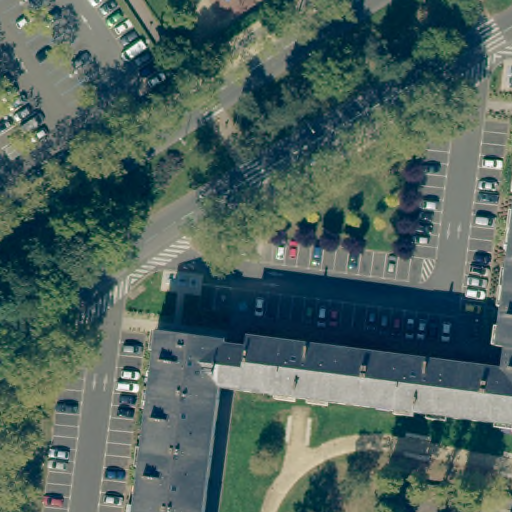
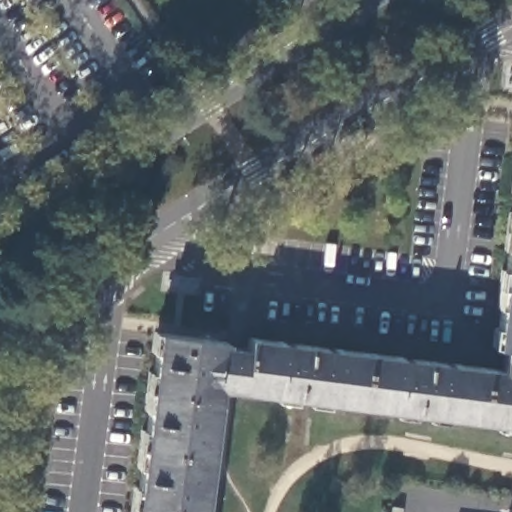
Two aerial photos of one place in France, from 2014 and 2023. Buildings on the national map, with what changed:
unchanged [(504,346),(497,345),(512,224),(512,346),(504,346)]
unchanged [(219,386),(203,512),(134,512),(157,332),(157,330),(224,339),(223,342),(246,345),(241,389),(219,386)]
unchanged [(512,346),(512,422),(427,412),(246,390),(241,389),(246,345),(247,334),(372,350),(453,360),(502,366),(504,346),(512,346)]

